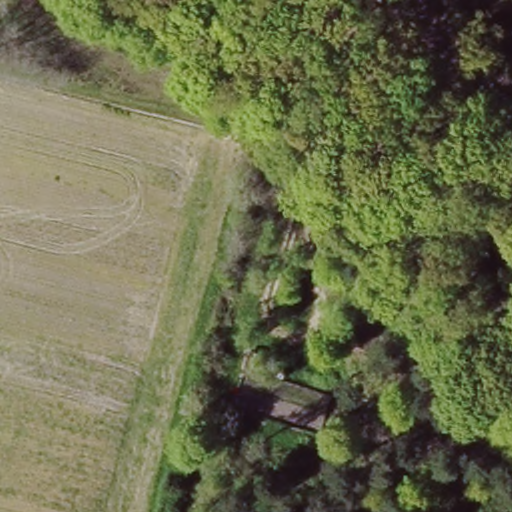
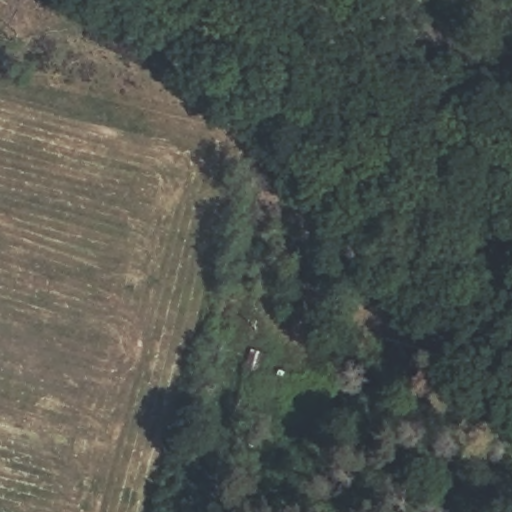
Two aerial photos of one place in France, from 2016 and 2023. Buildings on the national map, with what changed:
unchanged [(302,342),(296,366),(270,360),(278,335),(302,342)]

